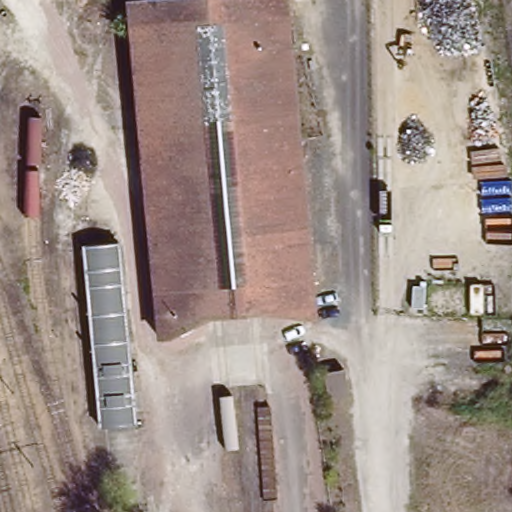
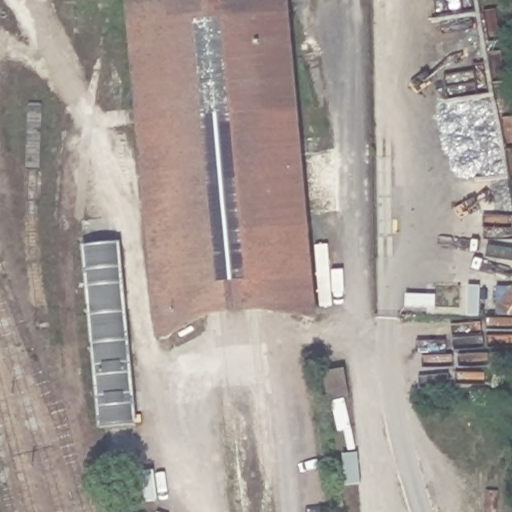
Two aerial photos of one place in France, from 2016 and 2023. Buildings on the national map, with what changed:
unchanged [(127,3),(153,0),(287,0),(317,324),(226,334),(157,342),(127,3)]
unchanged [(82,242),(124,239),(136,431),(98,432),(82,242)]

